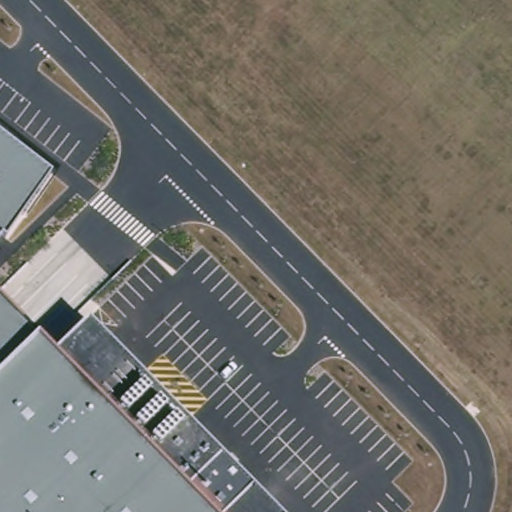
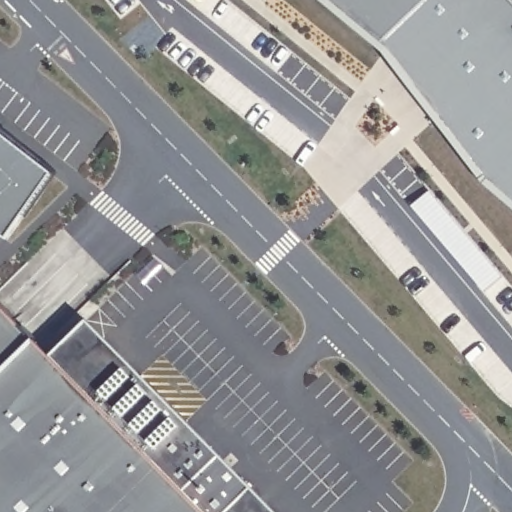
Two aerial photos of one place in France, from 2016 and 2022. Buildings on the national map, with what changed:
new [(512,210),(479,183),(383,54),(317,0),(512,0),(512,210)]
unchanged [(50,173),(3,236),(0,239),(0,133),(50,173)]
unchanged [(32,341),(50,358),(85,320),(275,512),(0,512),(0,308),(32,341)]

